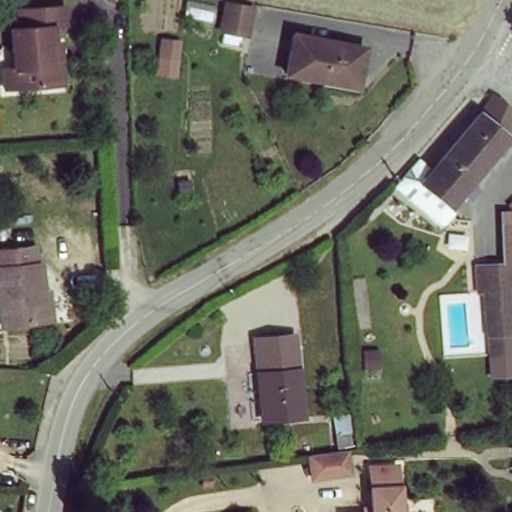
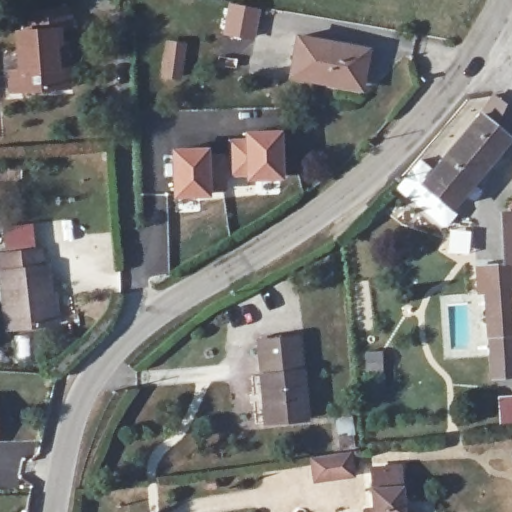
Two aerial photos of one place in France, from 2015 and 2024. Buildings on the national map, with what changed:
unchanged [(228,37),(232,9),(258,14),(253,42),(228,37)]
unchanged [(8,79),(16,79),(17,35),(27,36),(26,17),(73,15),(73,37),(57,37),(57,52),(72,54),(74,96),(63,96),(24,97),(7,97),(8,79)]
unchanged [(296,76),(303,35),(375,47),(365,87),(296,76)]
new [(164,39),(187,42),(181,84),(159,81),(164,39)]
unchanged [(445,214),(414,193),(424,185),(441,170),(461,144),(483,112),(489,105),(492,101),(512,114),(512,134),(449,217),(445,214)]
new [(243,136),(243,131),(282,127),(284,177),(230,178),(228,137),(243,136)]
new [(209,145),(212,196),(173,198),(169,147),(209,145)]
unchanged [(493,337),(488,294),(479,296),(477,268),(506,263),(505,260),(502,238),(512,236),(512,291),(510,291),(512,309),(512,355),(495,357),(493,337)]
unchanged [(55,326),(46,327),(6,330),(2,257),(38,255),(38,272),(44,272),(45,301),(55,301),(55,326)]
unchanged [(268,425),(261,338),(299,334),(304,425),(268,425)]
unchanged [(349,472),(313,477),(310,455),(346,450),(349,472)]
unchanged [(402,457),(403,505),(413,504),(413,512),(375,512),(374,458),(402,457)]

